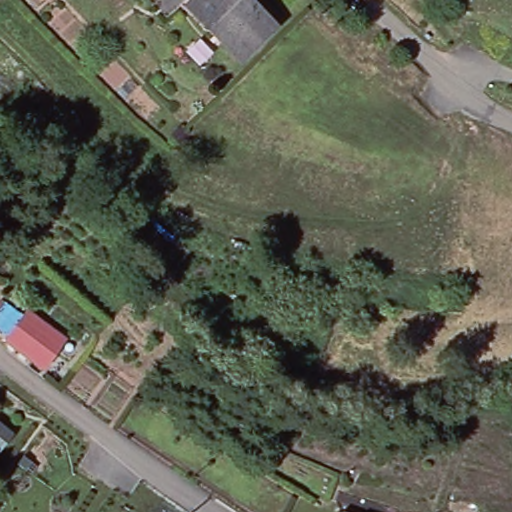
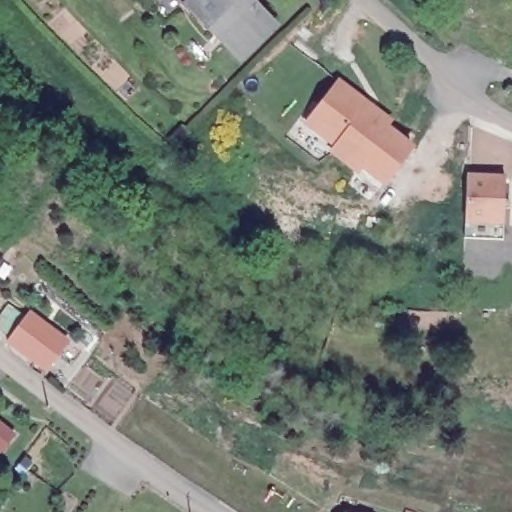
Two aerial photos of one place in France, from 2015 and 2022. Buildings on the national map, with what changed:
unchanged [(273,23),(248,48),(239,57),(189,4),(193,0),(249,0),(273,23)]
new [(369,106),(391,122),(387,127),(414,148),(387,182),(364,165),(361,170),(336,152),(341,146),(321,131),(311,123),(324,106),(343,85),(369,106)]
new [(469,177),(507,178),(507,221),(507,239),(469,239),(469,221),(469,177)]
unchanged [(68,352),(45,383),(41,380),(8,356),(30,324),(64,349),(68,352)]

